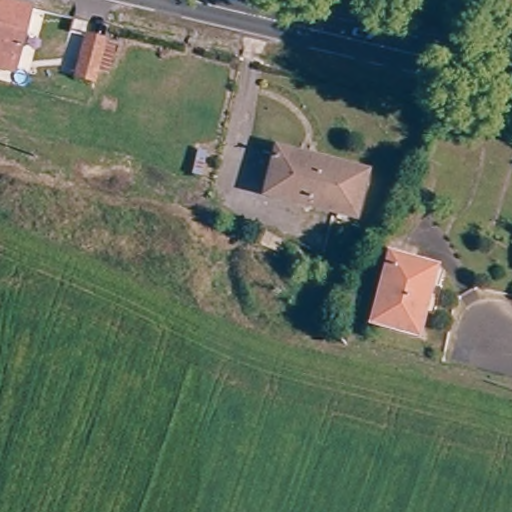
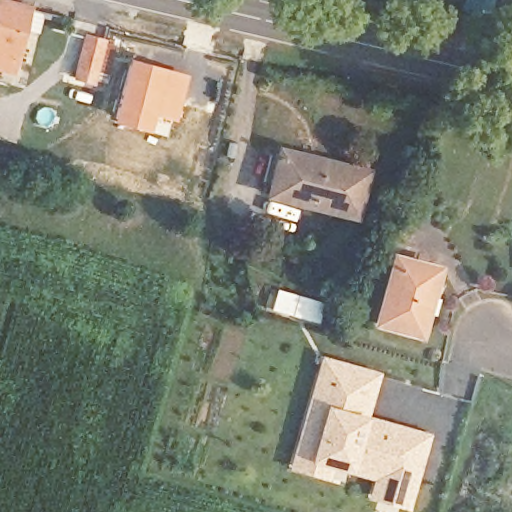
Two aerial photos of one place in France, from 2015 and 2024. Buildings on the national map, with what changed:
unchanged [(0,69),(0,1),(5,2),(29,8),(14,72),(0,69)]
unchanged [(114,46),(106,75),(96,72),(93,83),(74,78),(86,37),(104,42),(104,43),(114,46)]
new [(128,59),(186,74),(178,100),(184,102),(178,122),(149,114),(143,130),(113,121),(128,59)]
unchanged [(357,218),(269,196),(272,185),(263,183),(271,150),(280,152),(307,159),(367,173),(357,218)]
unchanged [(199,151),(208,153),(202,177),(193,175),(199,151)]
unchanged [(297,264),(290,261),(291,257),(299,260),(297,264)]
unchanged [(376,324),(394,259),(428,268),(437,270),(431,291),(419,336),(376,324)]
unchanged [(358,310),(347,306),(351,295),(353,296),(354,291),(364,294),(358,310)]
new [(382,371),(369,415),(433,433),(411,511),(369,500),(375,480),(353,473),(334,468),(330,481),(288,469),(322,354),(382,371)]

